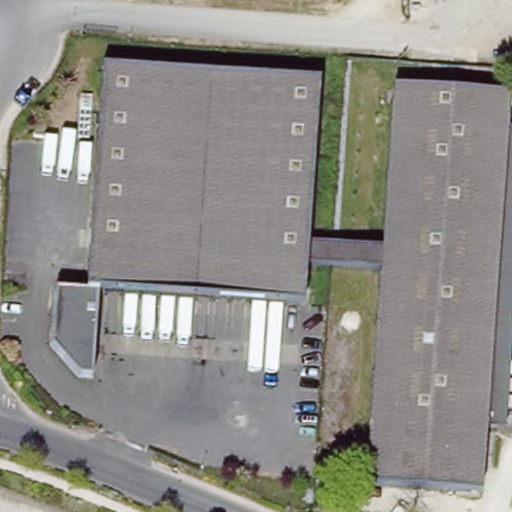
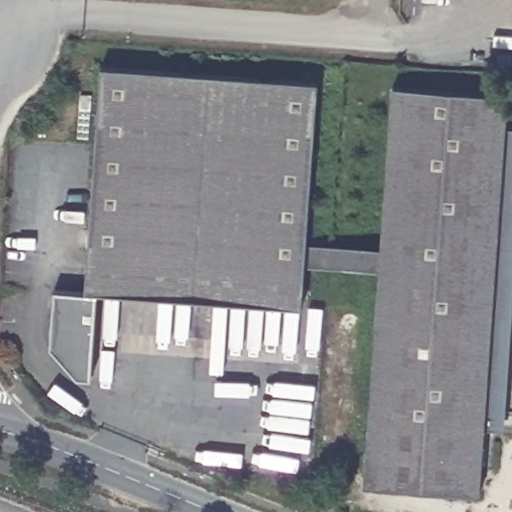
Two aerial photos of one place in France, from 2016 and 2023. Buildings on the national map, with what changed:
unchanged [(306,263),(302,303),(86,289),(102,65),(319,80),(307,242),(333,243),(331,265),(306,263)]
unchanged [(333,243),(382,246),(394,86),(506,94),(505,127),(485,427),(480,492),(365,483),(381,268),(331,265),(333,243)]
unchanged [(505,127),(512,127),(512,306),(503,427),(485,427),(505,127)]
unchanged [(93,376),(80,375),(53,340),(55,295),(101,297),(93,376)]

